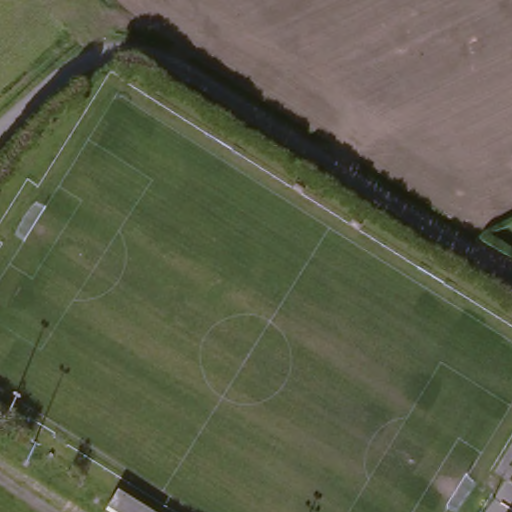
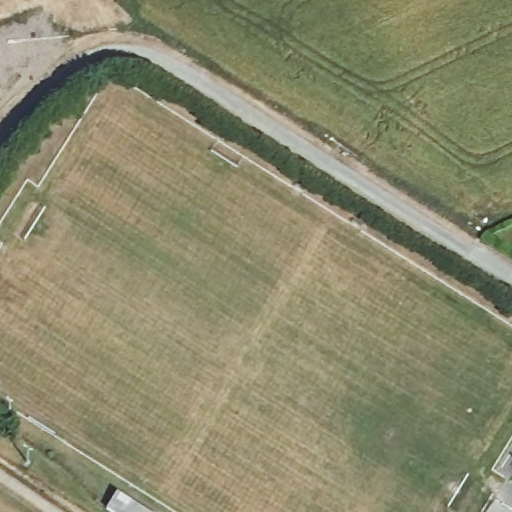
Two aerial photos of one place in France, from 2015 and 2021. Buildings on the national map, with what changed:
unchanged [(112,500),(132,512),(104,512),(111,502),(112,500)]

